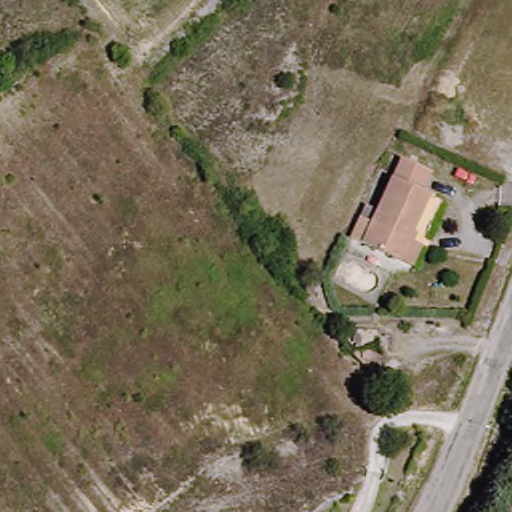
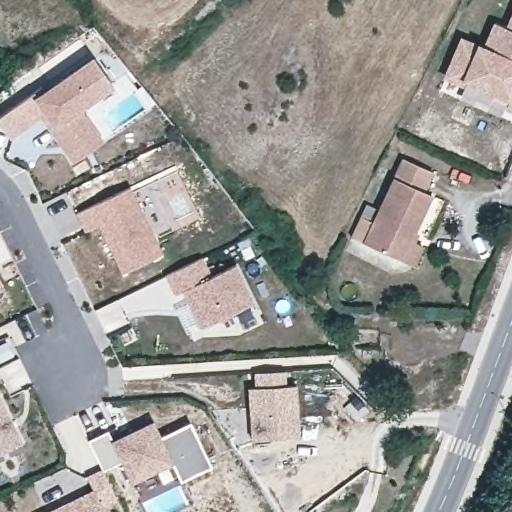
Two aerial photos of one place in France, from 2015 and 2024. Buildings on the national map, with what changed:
new [(482,45),(493,22),(505,27),(512,12),(512,113),(505,110),(509,101),(466,82),(462,86),(444,78),(460,37),(479,44),(482,45)]
new [(31,95),(33,98),(93,55),(114,86),(82,109),(105,141),(73,164),(41,117),(10,140),(0,125),(0,117),(31,95)]
unchanged [(413,264),(400,258),(360,239),(401,153),(431,166),(423,188),(431,192),(410,236),(424,242),(413,264)]
new [(163,255),(120,273),(97,225),(84,231),(76,213),(130,186),(163,255)]
new [(203,257),(211,276),(237,265),(255,302),(200,328),(182,291),(174,295),(165,275),(203,257)]
new [(4,290),(0,292),(0,283),(4,290)]
new [(288,373),(289,390),(299,389),(303,441),(254,445),(251,392),(258,391),(257,375),(288,373)]
new [(23,443),(0,455),(0,396),(23,443)]
new [(108,431),(112,440),(154,421),(162,437),(190,424),(212,468),(183,481),(175,464),(133,485),(122,462),(103,471),(102,469),(89,440),(108,431)]
new [(117,501),(102,508),(104,512),(47,512),(92,490),(86,476),(102,469),(117,501)]

